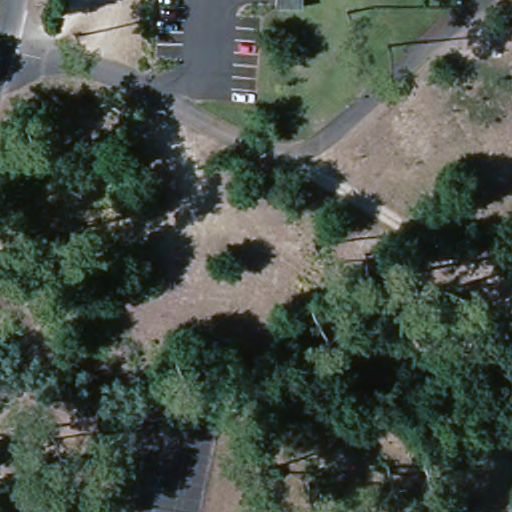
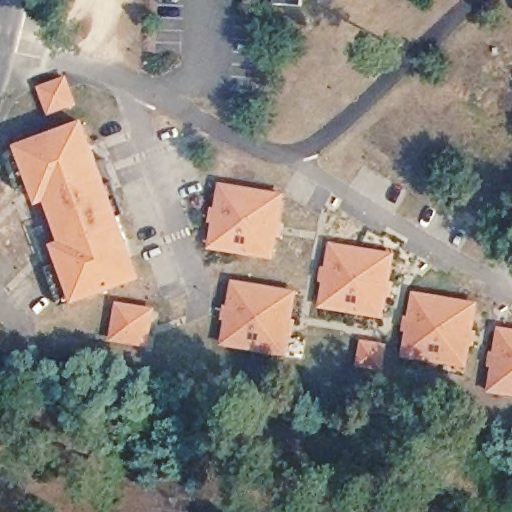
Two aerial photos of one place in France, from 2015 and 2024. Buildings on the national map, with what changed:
unchanged [(292,10),(292,0),(319,0),(319,9),(292,10)]
new [(76,304),(54,247),(63,244),(49,205),(40,209),(19,148),(87,123),(144,283),(76,304)]
new [(212,250),(221,185),(287,196),(276,260),(212,250)]
new [(322,310),(332,246),(397,256),(386,321),(322,310)]
new [(225,348),(234,283),(299,294),(289,358),(225,348)]
new [(405,360),(415,295),(480,305),(470,370),(405,360)]
new [(115,301),(156,308),(147,348),(107,341),(115,301)]
new [(490,394),(500,330),(512,331),(512,397),(490,394)]

